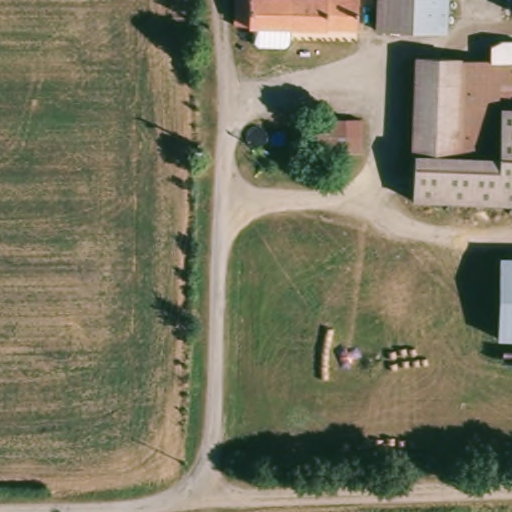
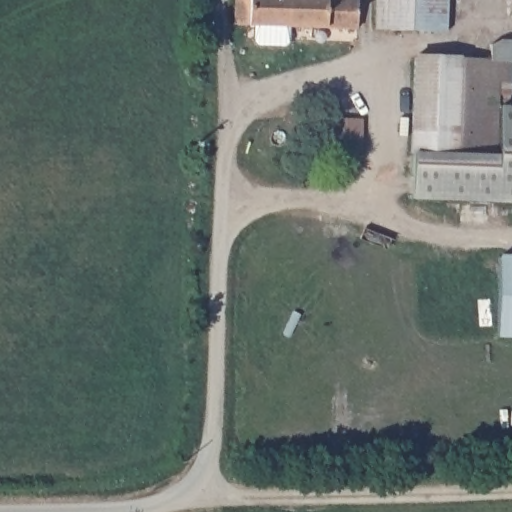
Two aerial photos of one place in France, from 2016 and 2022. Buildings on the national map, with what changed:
unchanged [(231,27),(231,0),(354,0),(353,29),(231,27)]
unchanged [(373,30),(373,0),(442,0),(441,31),(373,30)]
unchanged [(436,63),(436,163),(410,162),(410,63),(436,63)]
unchanged [(511,63),(511,87),(506,87),(494,87),(494,108),(494,165),(436,163),(436,63),(506,63),(511,63)]
unchanged [(512,109),(512,203),(409,200),(410,162),(436,163),(494,165),(494,123),(494,108),(512,109)]
unchanged [(362,121),(362,154),(301,152),(303,120),(362,121)]
unchanged [(512,261),(512,341),(493,340),(494,260),(512,261)]

